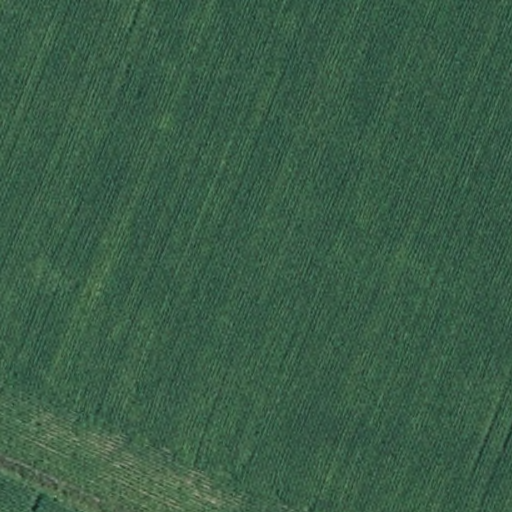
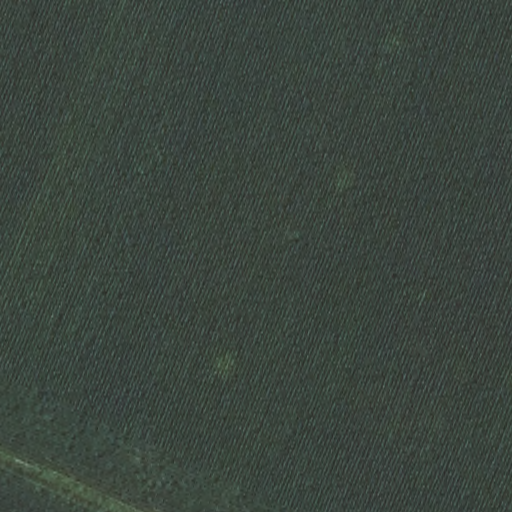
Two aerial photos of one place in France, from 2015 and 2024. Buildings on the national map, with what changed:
[]

